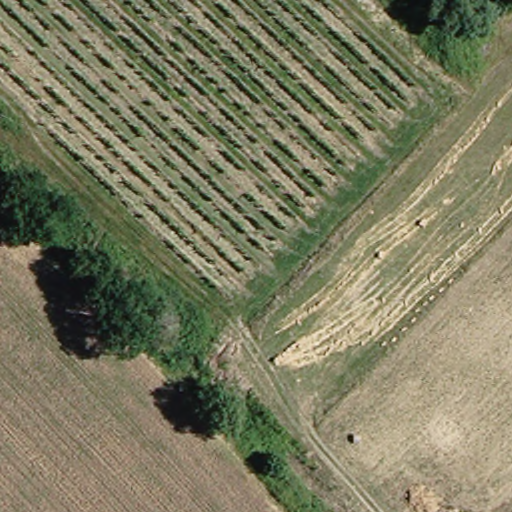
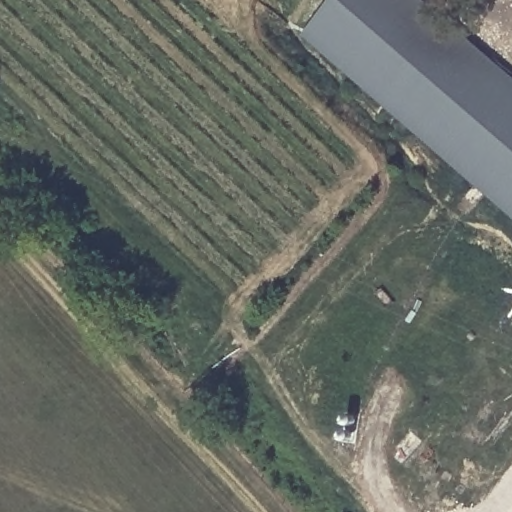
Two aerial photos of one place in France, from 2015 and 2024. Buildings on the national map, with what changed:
new [(295,38),(326,0),(412,0),(512,83),(512,220),(295,38)]

